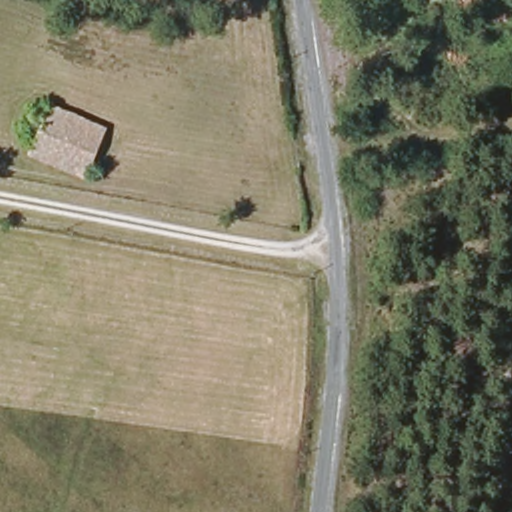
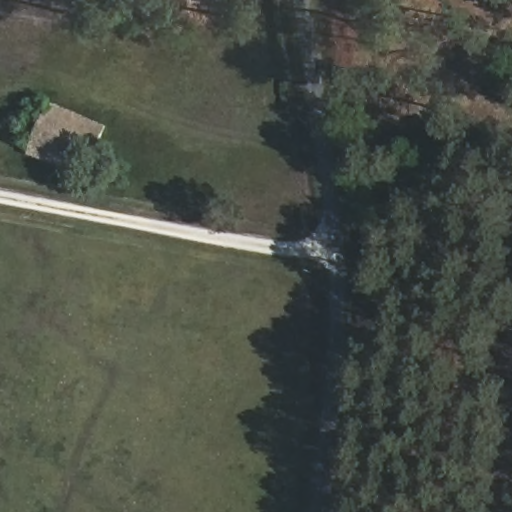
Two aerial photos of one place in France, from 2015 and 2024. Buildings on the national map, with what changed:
unchanged [(84,176),(33,161),(49,112),(99,128),(84,176)]

